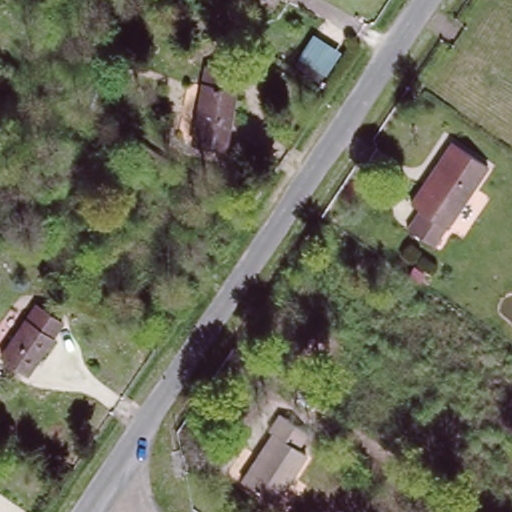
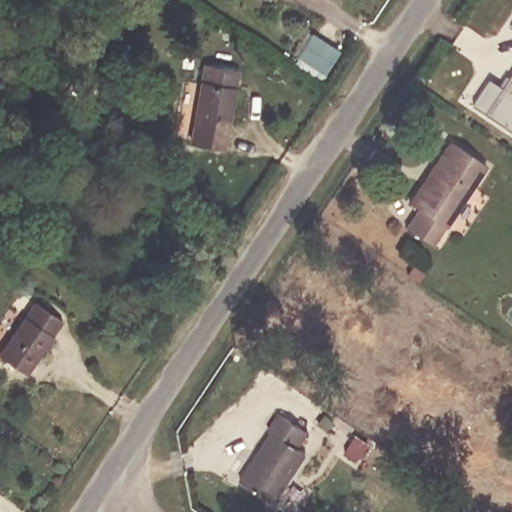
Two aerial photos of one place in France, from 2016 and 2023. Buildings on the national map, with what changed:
unchanged [(202,76),(234,81),(221,159),(189,153),(202,76)]
new [(475,105),(491,80),(505,89),(512,78),(512,130),(475,105)]
unchanged [(407,228),(420,209),(410,202),(451,140),(487,167),(448,228),(435,247),(407,228)]
unchanged [(59,323),(25,375),(0,358),(0,353),(32,305),(59,323)]
unchanged [(272,435),(269,432),(280,416),(309,435),(298,450),(307,456),(274,505),(241,482),(272,435)]

